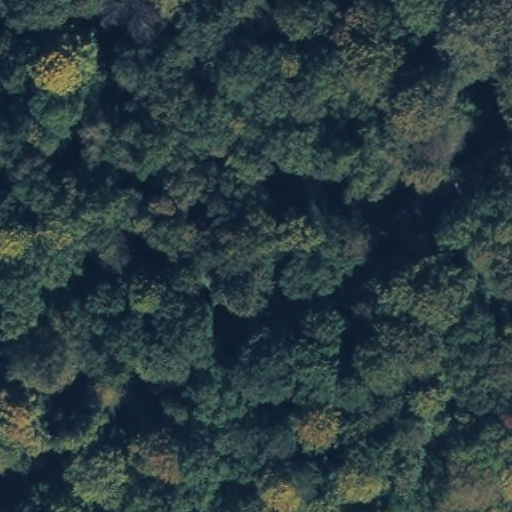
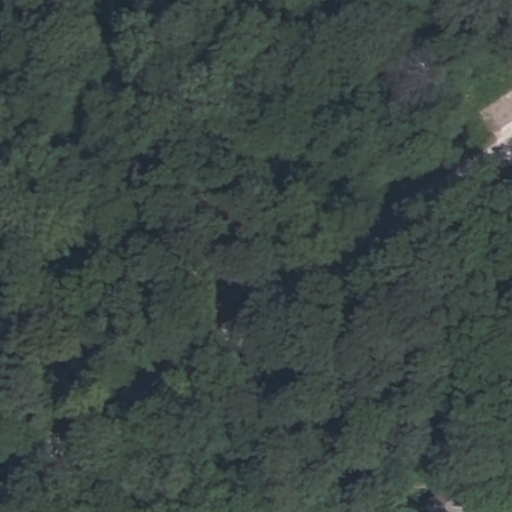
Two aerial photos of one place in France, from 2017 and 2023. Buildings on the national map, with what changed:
[]

